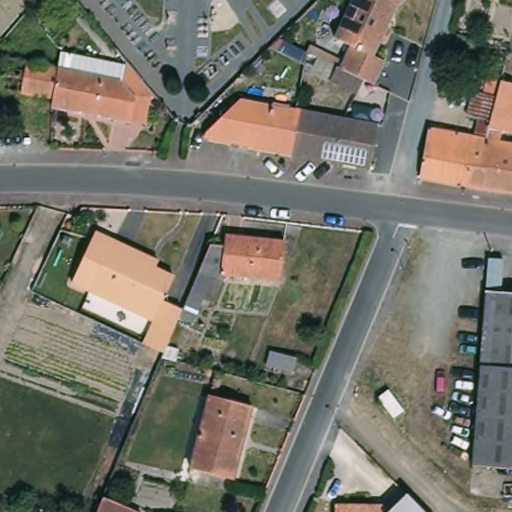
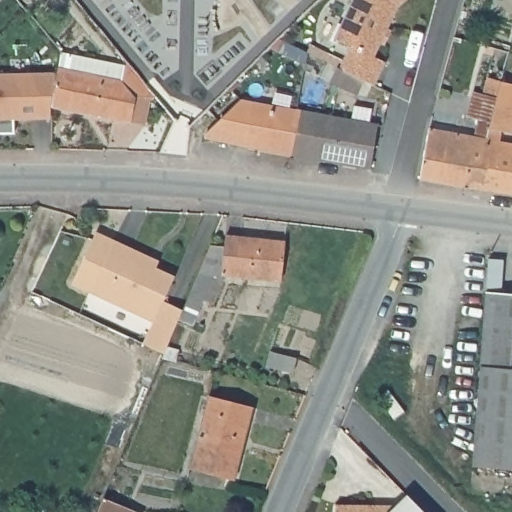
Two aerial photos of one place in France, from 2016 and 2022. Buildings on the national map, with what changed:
unchanged [(337,67),(339,69),(350,45),(334,37),(353,0),(403,0),(396,6),(386,29),(390,31),(384,44),(380,41),(373,56),(384,61),(373,85),(364,80),(363,80),(356,95),(330,82),(337,67)]
unchanged [(144,123),(130,121),(129,122),(51,106),(52,99),(57,68),(60,52),(123,65),(127,65),(146,87),(154,97),(147,101),(144,123)]
demolished [(57,68),(52,99),(0,91),(0,85),(3,70),(0,69),(0,58),(57,68)]
new [(57,72),(52,99),(51,106),(49,119),(12,119),(12,132),(0,132),(0,74),(57,72)]
unchanged [(474,137),(478,120),(466,117),(473,91),(482,94),(487,77),(501,81),(500,81),(500,84),(490,122),(486,140),(481,157),(487,158),(487,162),(485,172),(470,170),(467,186),(420,177),(428,127),(474,137)]
unchanged [(487,162),(487,158),(481,157),(486,140),(490,122),(500,84),(500,81),(501,81),(512,83),(512,133),(501,131),(499,142),(512,144),(512,192),(467,186),(470,170),(485,172),(487,162)]
unchanged [(238,99),(252,102),(243,146),(203,137),(238,99)]
unchanged [(320,114),(344,119),(355,121),(377,125),(369,169),(337,162),(312,159),(291,155),(243,146),(252,102),(295,110),(320,114)]
unchanged [(96,232),(113,240),(90,290),(70,281),(96,232)]
unchanged [(202,298),(191,325),(178,319),(182,309),(185,303),(185,302),(187,299),(198,272),(204,258),(204,257),(208,247),(210,245),(224,245),(225,238),(225,235),(241,237),(284,241),(280,280),(225,275),(213,303),(202,298)]
unchanged [(166,348),(164,353),(143,343),(145,339),(153,320),(130,310),(90,290),(113,240),(130,249),(158,261),(155,268),(173,277),(162,300),(182,309),(178,319),(166,348)]
unchanged [(486,291),(512,294),(512,469),(472,466),(486,291)]
unchanged [(296,357),(293,372),(267,366),(270,351),(296,357)]
unchanged [(252,406),(234,480),(190,468),(209,395),(252,406)]
unchanged [(138,512),(97,512),(103,497),(138,512)]
unchanged [(420,512),(334,512),(334,508),(374,509),(395,509),(406,498),(420,512)]

